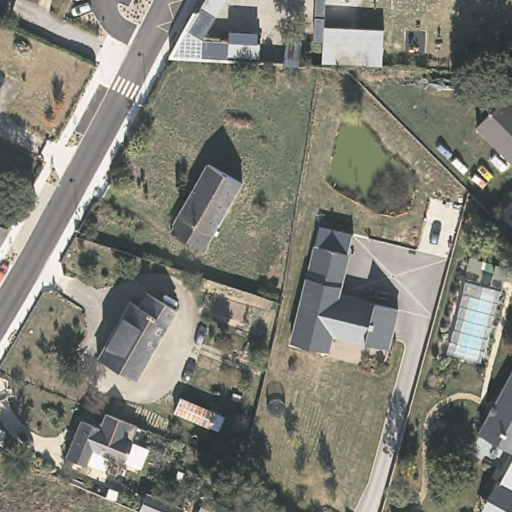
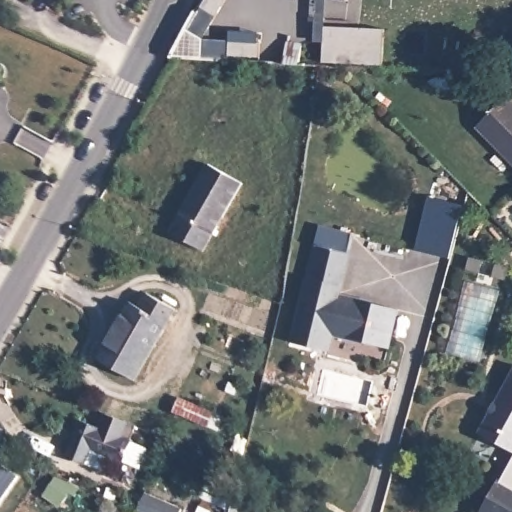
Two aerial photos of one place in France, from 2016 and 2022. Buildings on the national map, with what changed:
unchanged [(322,64),(323,41),(315,40),(317,0),(327,0),(327,26),(383,30),(383,66),(322,64)]
unchanged [(335,0),(349,0),(348,2),(335,0)]
unchanged [(202,12),(190,32),(256,35),(256,45),(265,45),(266,59),(164,54),(191,6),(202,12)]
unchanged [(302,46),(300,66),(284,65),(286,44),(302,46)]
unchanged [(512,101),(512,163),(477,127),(508,97),(512,101)]
unchanged [(243,183),(204,252),(170,232),(181,215),(180,214),(209,164),(243,183)]
new [(430,199),(464,209),(449,261),(416,252),(430,199)]
unchanged [(0,241),(0,225),(7,227),(0,241)]
unchanged [(365,340),(330,331),(326,347),(287,336),(313,241),(347,250),(336,290),(352,295),(398,307),(390,336),(387,346),(365,340)]
unchanged [(175,310),(135,380),(96,358),(130,301),(139,306),(146,293),(175,310)]
unchanged [(479,438),(490,418),(496,422),(501,411),(495,408),(512,376),(512,455),(479,438)]
unchanged [(215,412),(208,427),(173,412),(180,397),(215,412)]
unchanged [(124,462),(110,456),(105,470),(85,463),(85,465),(65,457),(80,420),(100,427),(105,412),(136,425),(132,440),(149,447),(140,468),(124,462)]
unchanged [(491,502),(497,485),(500,487),(512,463),(512,512),(486,512),(491,502)]
unchanged [(0,469),(15,478),(0,502),(0,469)]
unchanged [(146,494),(183,510),(182,512),(142,512),(140,511),(146,494)]

